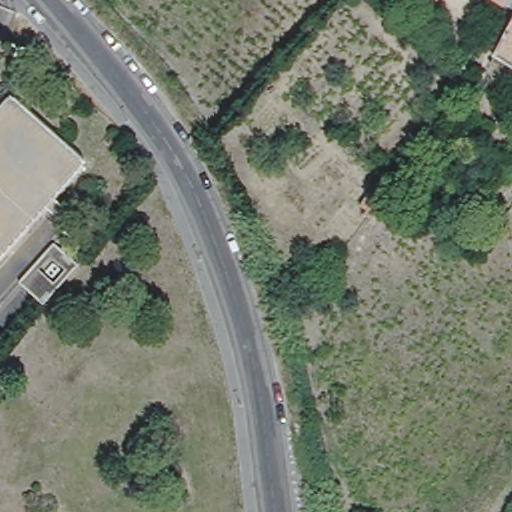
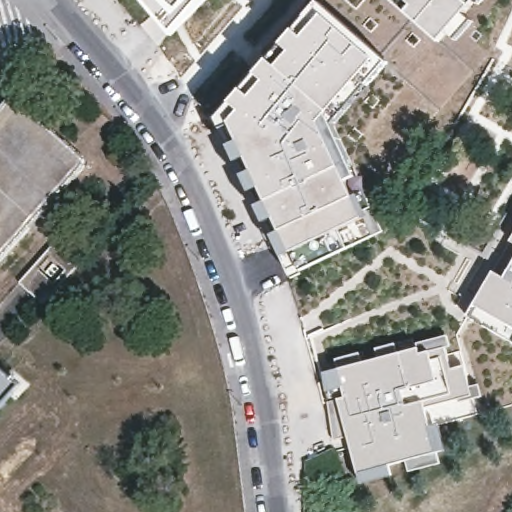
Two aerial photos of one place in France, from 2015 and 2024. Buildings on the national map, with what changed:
new [(156,14),(145,0),(197,0),(179,21),(163,6),(156,14)]
new [(475,0),(476,0),(475,1),(440,41),(408,13),(395,1),(394,2),(392,0),(475,0)]
new [(474,0),(491,0),(483,9),(474,0)]
demolished [(512,0),(512,4),(507,0),(512,0)]
new [(259,206),(252,192),(244,175),(238,161),(230,145),(241,140),(233,124),(223,129),(217,118),(232,101),(243,89),(258,73),(270,59),(283,44),(295,30),(306,16),(319,1),(381,54),(389,61),(334,124),(384,231),(374,235),(301,270),(292,274),(284,257),(273,234),(267,223),(259,206)]
new [(465,14),(473,20),(456,40),(448,33),(465,14)]
demolished [(512,31),(512,64),(498,55),(512,31)]
unchanged [(90,160),(58,195),(82,217),(75,224),(51,204),(0,258),(0,107),(14,93),(90,160)]
new [(467,317),(474,304),(512,238),(512,342),(493,331),(467,317)]
unchanged [(74,263),(39,303),(16,281),(51,242),(74,263)]
new [(423,467),(361,484),(358,474),(338,399),(345,397),(338,369),(419,348),(421,353),(446,347),(451,368),(464,365),(472,395),(416,410),(421,429),(431,464),(423,467)]
new [(21,390),(0,413),(0,371),(21,390)]
new [(379,507),(390,506),(390,499),(419,497),(421,509),(477,506),(494,504),(494,512),(379,512),(379,507)]

